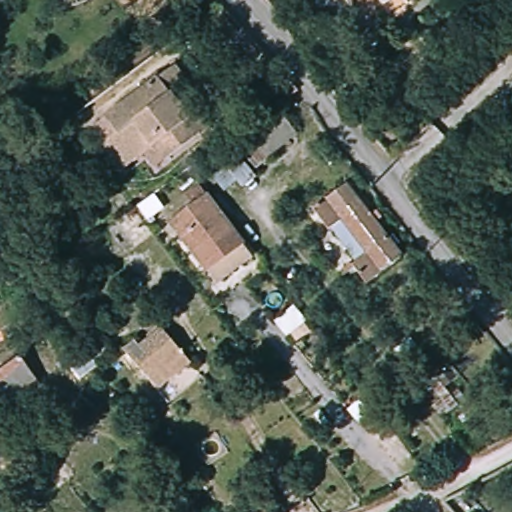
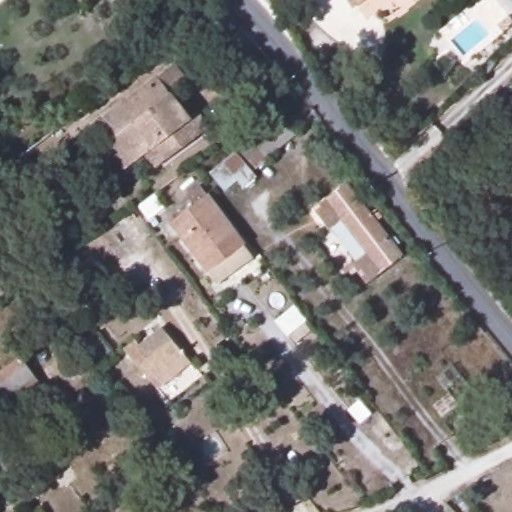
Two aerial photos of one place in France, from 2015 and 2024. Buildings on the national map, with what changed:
unchanged [(269,3),(267,0),(273,0),(269,3)]
unchanged [(354,11),(345,0),(368,0),(354,11)]
unchanged [(103,137),(91,120),(103,112),(102,110),(154,70),(156,72),(173,59),(186,75),(169,87),(190,113),(196,108),(207,122),(153,162),(143,149),(120,166),(100,140),(103,137)]
unchanged [(256,125),(273,147),(241,172),(223,150),(256,125)]
unchanged [(338,231),(320,207),(351,182),(404,256),(376,281),(359,260),(364,256),(342,227),(338,231)]
unchanged [(223,285),(214,275),(174,226),(198,208),(193,200),(203,193),(248,249),(256,260),(223,285)]
unchanged [(126,348),(136,339),(142,345),(163,326),(194,362),(161,390),(126,348)]
unchanged [(50,382),(28,400),(25,397),(8,410),(0,400),(0,382),(31,358),(50,382)]
unchanged [(491,440),(460,400),(474,391),(508,431),(491,440)]

